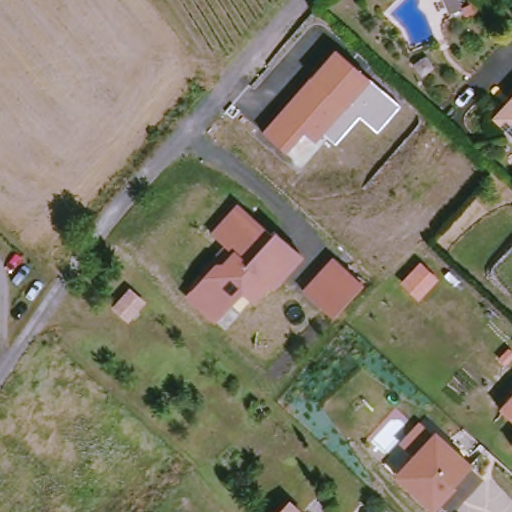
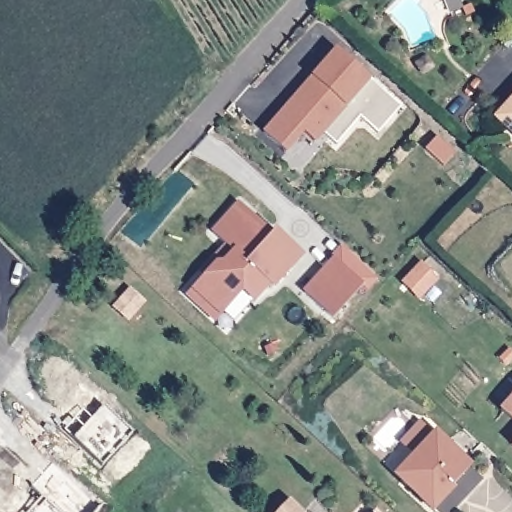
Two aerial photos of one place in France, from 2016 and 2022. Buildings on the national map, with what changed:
unchanged [(401,105),(377,131),(360,117),(336,144),(324,133),(315,142),(304,132),(285,153),(261,131),(335,49),(401,105)]
unchanged [(512,104),(512,121),(503,112),(512,104)]
unchanged [(187,298),(197,287),(203,280),(199,277),(225,249),(210,235),(237,206),(270,235),(273,232),(300,257),(270,290),(266,286),(252,302),(240,291),(218,315),(212,321),(187,298)]
unchanged [(333,261),(362,287),(330,320),(302,295),(333,261)]
unchanged [(439,280),(420,301),(400,282),(420,262),(439,280)]
unchanged [(512,405),(512,418),(505,412),(512,405)]
unchanged [(484,480),(455,512),(433,512),(400,482),(394,477),(410,459),(433,434),(484,480)]

